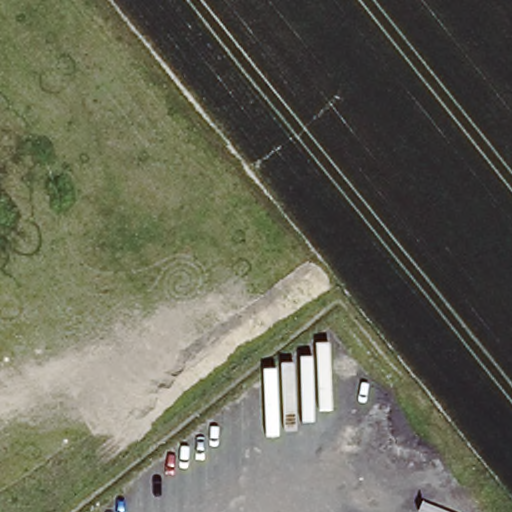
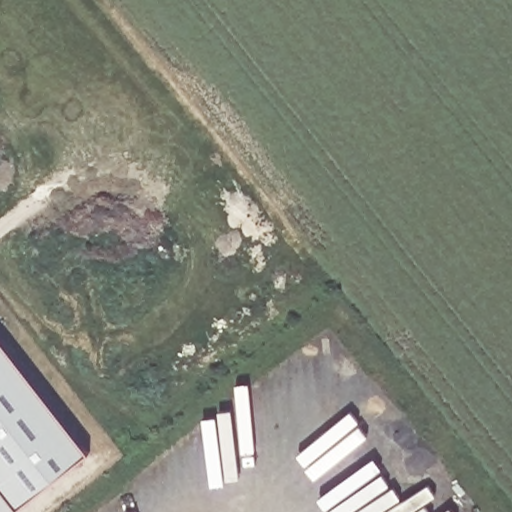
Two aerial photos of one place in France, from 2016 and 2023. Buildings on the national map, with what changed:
new [(11,511),(0,497),(0,352),(82,454),(11,511)]

